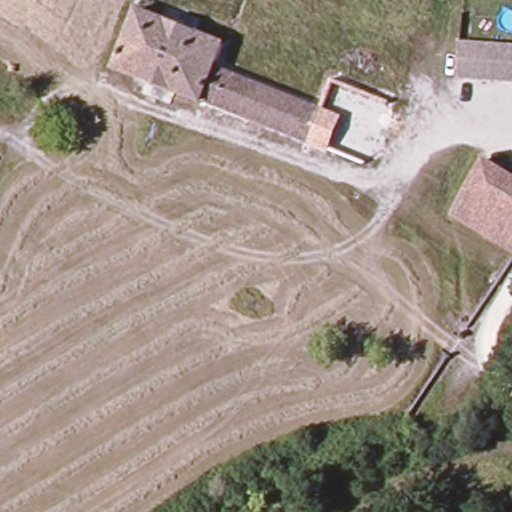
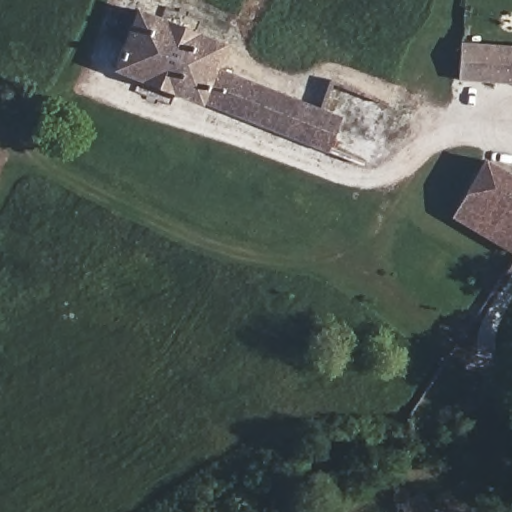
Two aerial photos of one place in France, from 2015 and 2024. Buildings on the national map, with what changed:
unchanged [(135,16),(224,48),(214,73),(203,102),(200,109),(114,74),(135,16)]
unchanged [(512,55),(512,90),(443,82),(450,47),(512,55)]
unchanged [(320,114),(309,146),(203,102),(214,73),(320,114)]
unchanged [(483,166),(512,182),(512,256),(452,226),(483,166)]

